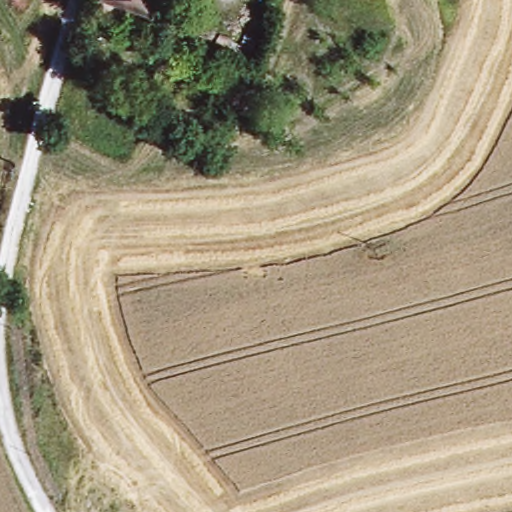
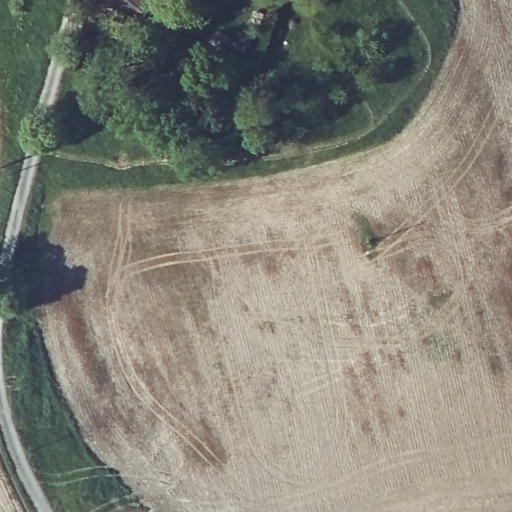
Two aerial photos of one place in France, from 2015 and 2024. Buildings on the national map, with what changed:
unchanged [(149,6),(129,0),(151,0),(149,6)]

